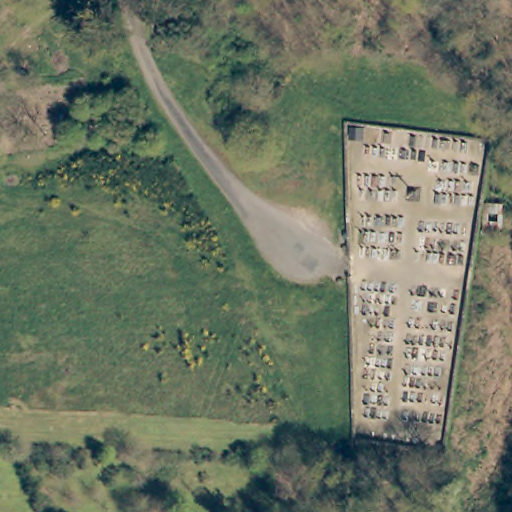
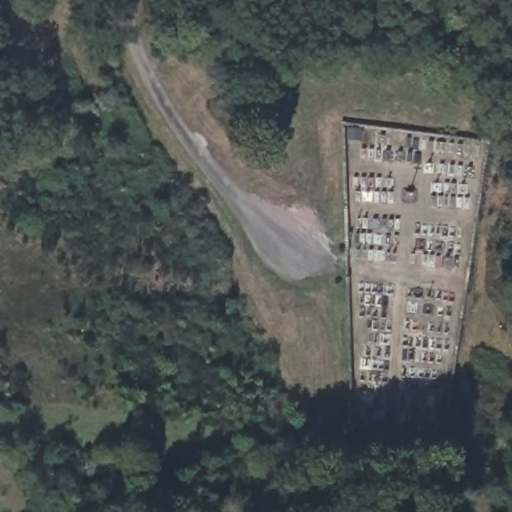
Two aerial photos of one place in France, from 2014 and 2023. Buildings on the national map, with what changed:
[]

